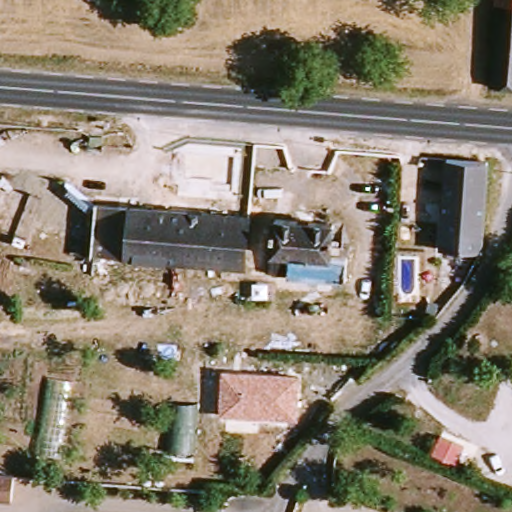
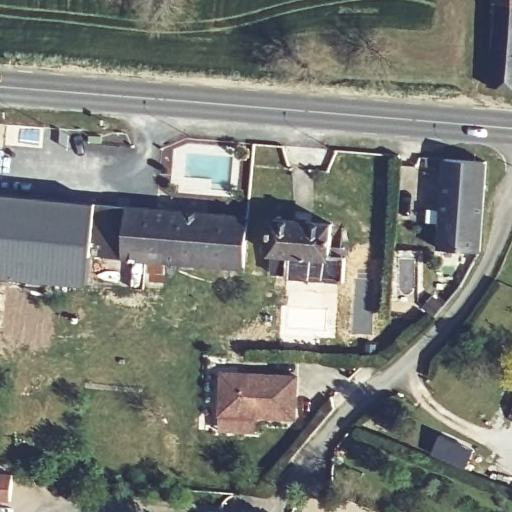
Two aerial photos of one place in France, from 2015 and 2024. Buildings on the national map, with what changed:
unchanged [(492,0),(512,0),(512,90),(486,89),(492,0)]
unchanged [(479,234),(478,251),(476,251),(435,248),(441,164),(484,167),(479,234)]
new [(88,250),(87,286),(0,277),(0,194),(91,206),(88,250)]
unchanged [(88,250),(91,206),(243,220),(240,266),(152,256),(101,252),(88,250)]
unchanged [(284,283),(284,274),(285,255),(269,255),(272,218),(327,221),(325,256),(345,257),(343,285),(284,283)]
demolished [(101,252),(152,256),(149,285),(99,281),(101,252)]
unchanged [(300,375),(299,420),(220,416),(222,371),(300,375)]
unchanged [(468,443),(457,469),(429,458),(439,431),(468,443)]
unchanged [(12,474),(10,501),(0,500),(0,473),(12,474)]

